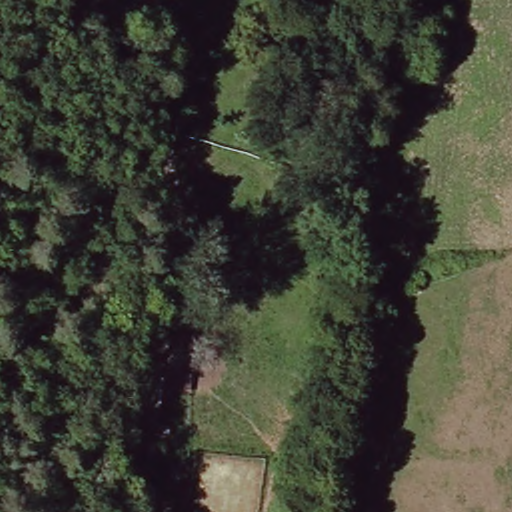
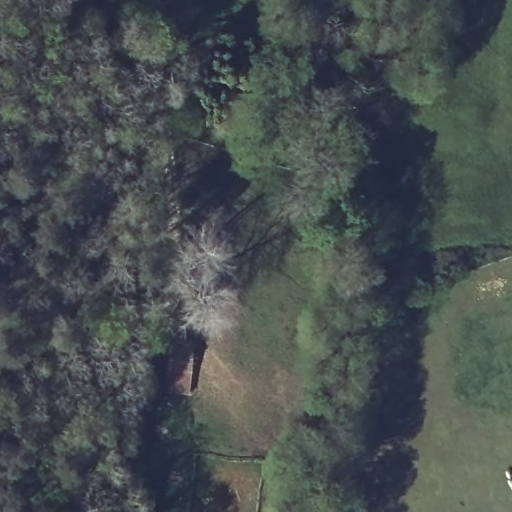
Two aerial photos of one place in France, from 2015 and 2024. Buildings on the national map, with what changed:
unchanged [(161,375),(163,337),(193,340),(188,377),(161,375)]

